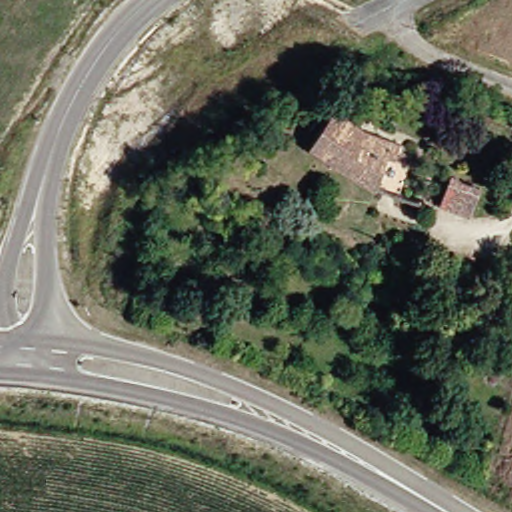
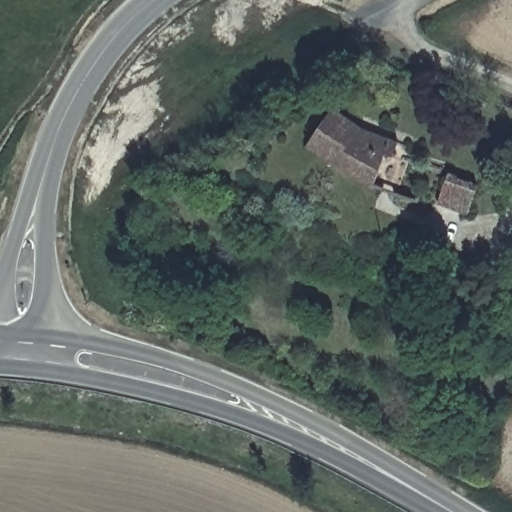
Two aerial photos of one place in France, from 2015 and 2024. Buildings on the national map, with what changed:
unchanged [(337,110),(371,130),(405,146),(400,157),(393,153),(373,187),(313,147),(337,110)]
unchanged [(449,190),(454,176),(480,186),(468,221),(448,214),(441,211),(449,190)]

